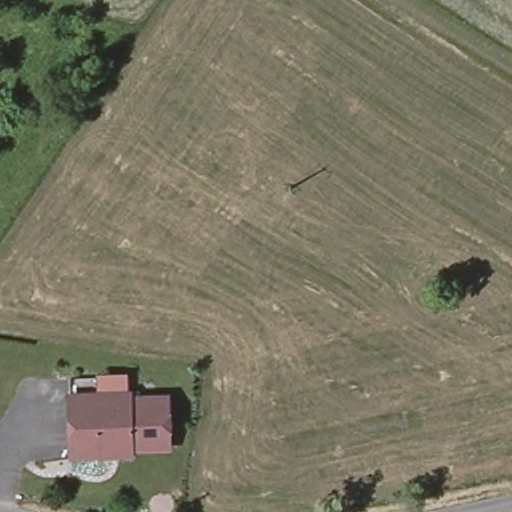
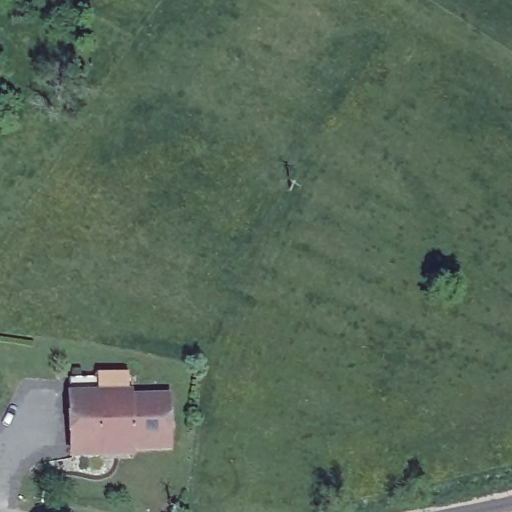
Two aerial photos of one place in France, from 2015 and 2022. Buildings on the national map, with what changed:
unchanged [(126,375),(126,395),(164,396),(166,445),(96,448),(96,453),(68,453),(66,376),(126,375)]

